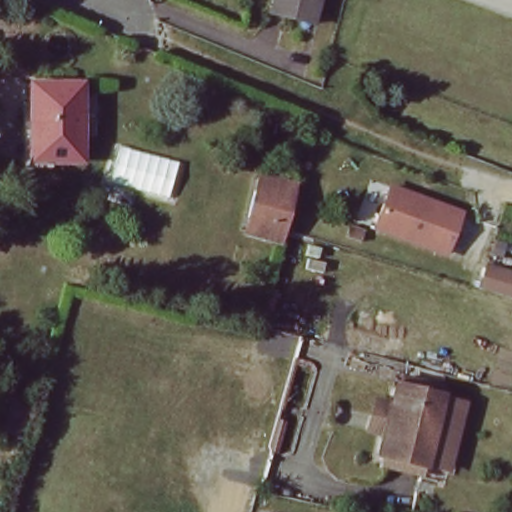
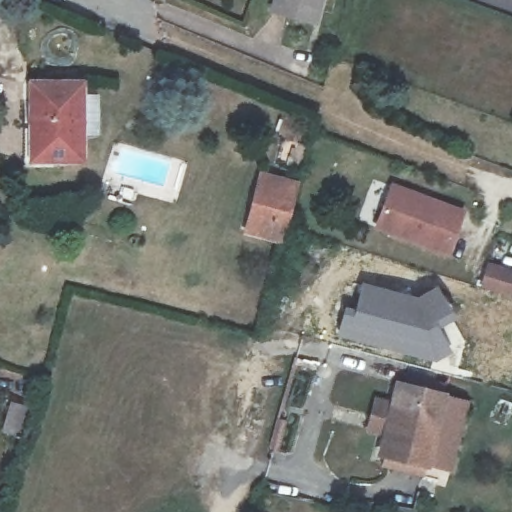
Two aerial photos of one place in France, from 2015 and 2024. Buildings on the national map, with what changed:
unchanged [(273,13),(276,0),(320,0),(316,22),(273,13)]
unchanged [(23,139),(23,91),(33,91),(33,75),(81,76),(80,160),(38,160),(23,160),(23,139)]
unchanged [(257,176),(293,185),(278,245),(242,235),(257,176)]
unchanged [(470,210),(452,257),(378,233),(394,188),(470,210)]
new [(512,272),(512,294),(511,297),(478,287),(485,264),(512,272)]
new [(354,309),(360,283),(414,298),(435,285),(456,319),(440,329),(452,351),(434,361),(336,334),(344,307),(354,309)]
unchanged [(466,399),(451,467),(380,454),(393,379),(466,399)]

